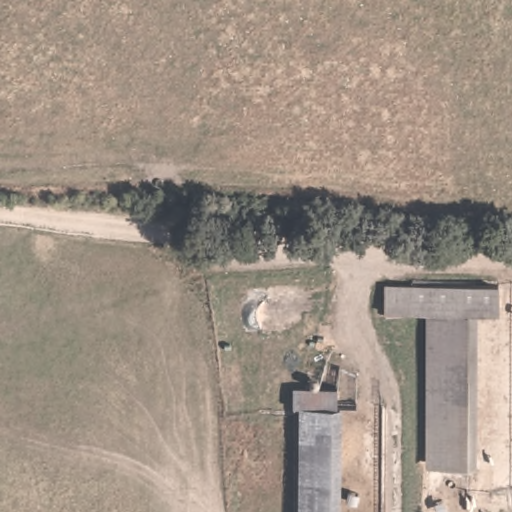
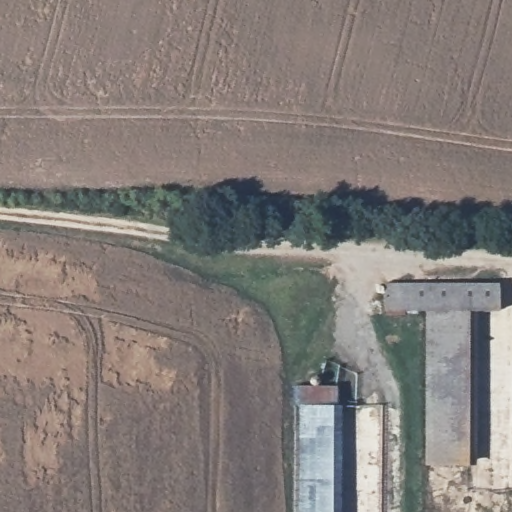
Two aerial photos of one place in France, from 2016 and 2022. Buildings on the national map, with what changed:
unchanged [(499,278),(499,304),(480,305),(477,458),(424,459),(426,306),(383,306),(384,279),(499,278)]
unchanged [(337,385),(337,405),(342,405),(342,512),(300,512),(300,405),(292,406),(292,385),(337,385)]

